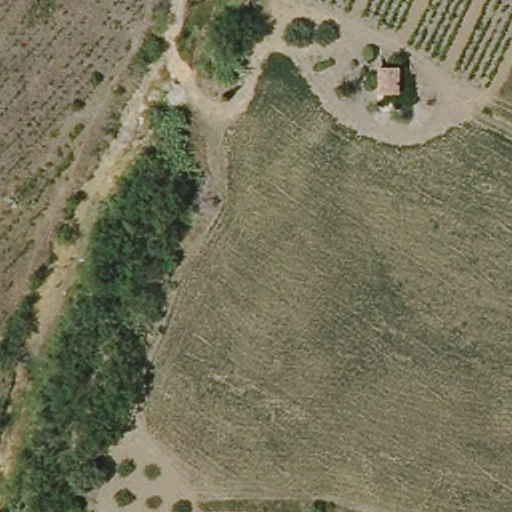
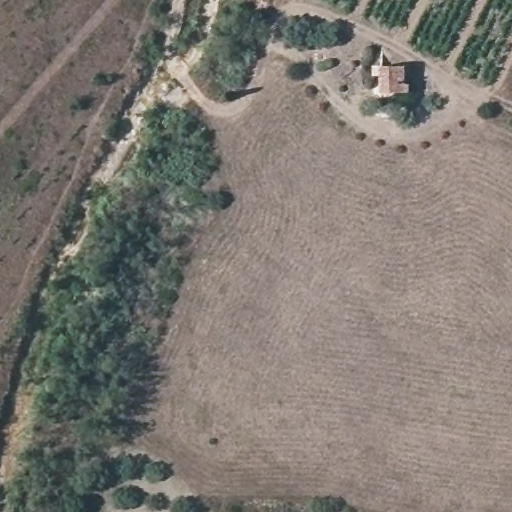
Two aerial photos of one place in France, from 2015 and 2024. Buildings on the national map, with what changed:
unchanged [(382,58),(383,71),(365,72),(365,57),(382,58)]
unchanged [(383,71),(396,71),(397,87),(383,88),(383,71)]

